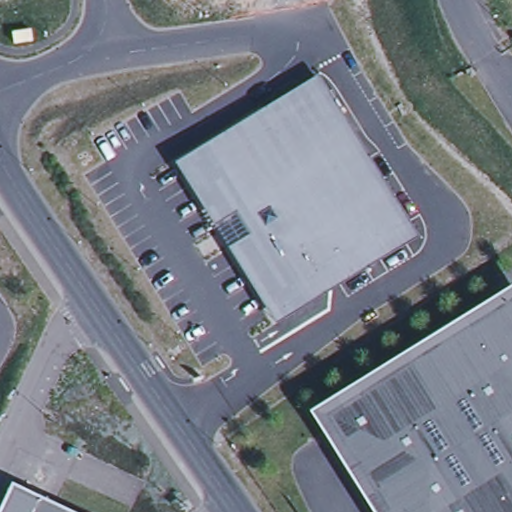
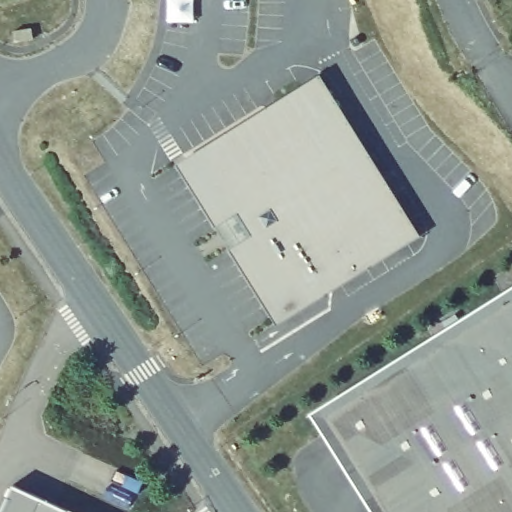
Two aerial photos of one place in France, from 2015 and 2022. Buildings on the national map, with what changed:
unchanged [(318,79),(417,238),(278,326),(232,251),(253,238),(239,216),(218,229),(180,167),(318,79)]
unchanged [(387,472),(376,479),(357,448),(345,456),(322,420),(329,416),(322,405),(512,286),(512,512),(409,512),(411,510),(387,472)]
unchanged [(68,512),(3,512),(15,486),(68,512)]

